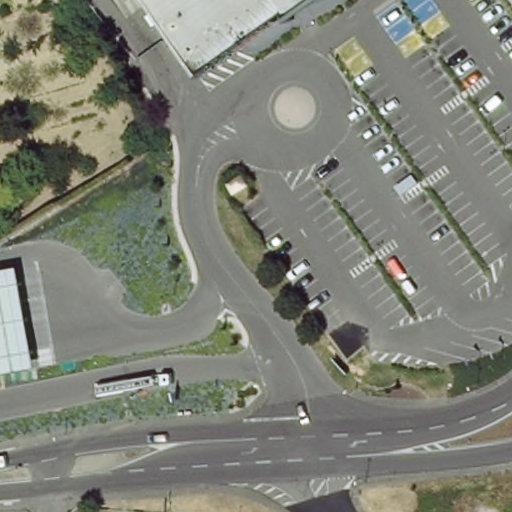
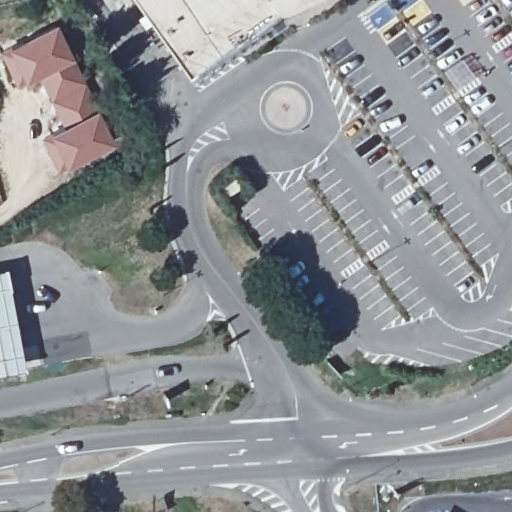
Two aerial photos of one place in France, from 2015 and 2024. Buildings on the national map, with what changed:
unchanged [(310,5),(300,9),(291,12),(281,16),(191,79),(136,0),(318,0),(310,5)]
new [(57,22),(98,109),(61,126),(37,76),(15,85),(0,52),(0,50),(57,22)]
new [(61,126),(98,109),(117,144),(57,172),(40,137),(61,126)]
unchanged [(25,372),(0,375),(0,270),(5,269),(25,372)]

